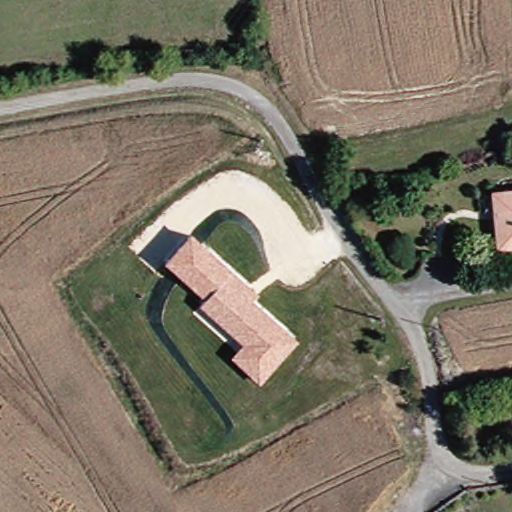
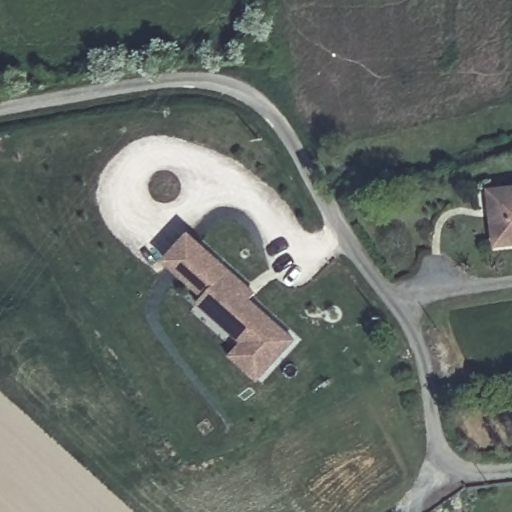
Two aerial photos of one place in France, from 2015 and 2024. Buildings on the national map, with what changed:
unchanged [(490,217),(487,190),(495,189),(512,187),(512,244),(493,245),(490,217)]
unchanged [(258,292),(252,299),(298,340),(259,382),(230,356),(242,343),(198,304),(204,298),(163,260),(190,233),(258,292)]

